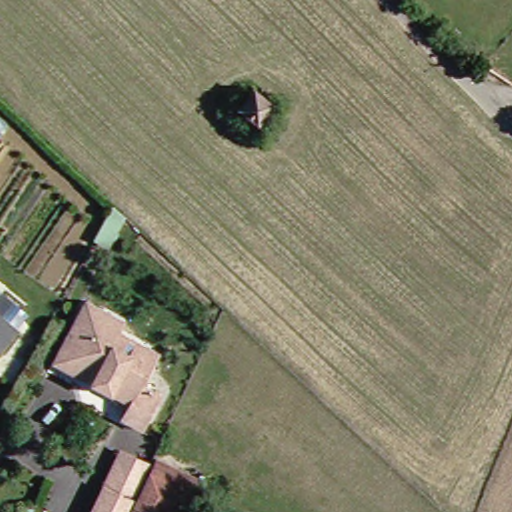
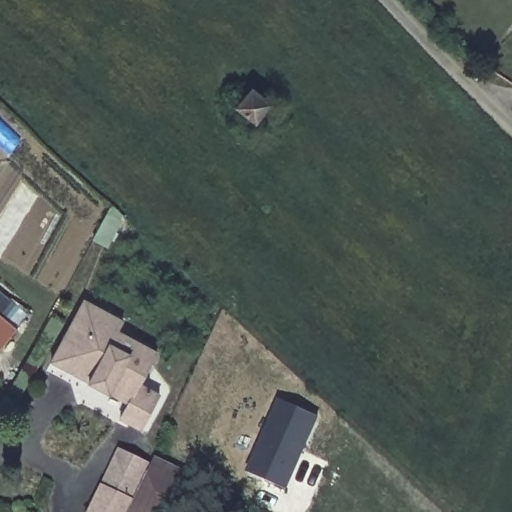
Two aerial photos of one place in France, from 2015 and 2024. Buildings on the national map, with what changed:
unchanged [(251,89),(268,106),(252,125),(234,108),(251,89)]
unchanged [(105,209),(117,217),(105,244),(90,237),(105,209)]
unchanged [(45,366),(49,359),(76,299),(114,318),(109,332),(146,351),(135,376),(150,388),(131,428),(113,420),(119,403),(83,385),(45,366)]
unchanged [(0,340),(0,323),(8,329),(0,340)]
demolished [(418,363),(429,372),(420,383),(408,374),(418,363)]
new [(286,489),(246,472),(277,398),(319,416),(286,489)]
unchanged [(111,458),(139,473),(147,460),(176,476),(172,490),(184,495),(177,512),(154,512),(150,510),(150,512),(84,512),(98,482),(111,458)]

